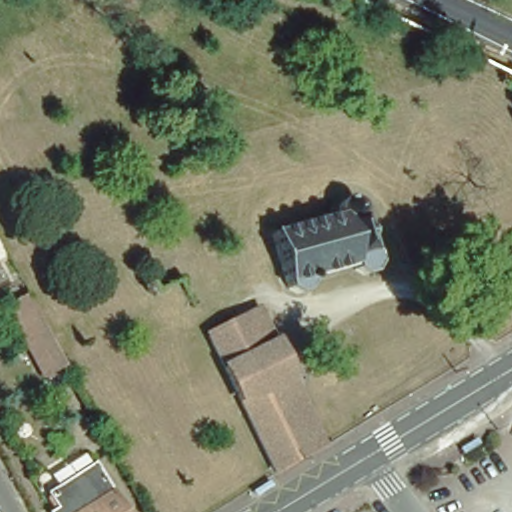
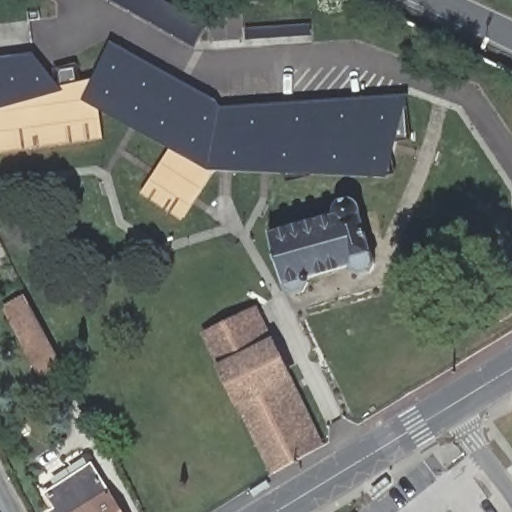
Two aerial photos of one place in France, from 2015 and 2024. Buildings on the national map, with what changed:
new [(164,0),(208,24),(195,46),(113,0),(164,0)]
new [(412,140),(396,141),(387,178),(216,171),(184,220),(142,193),(170,149),(101,110),(105,139),(0,153),(0,57),(34,53),(61,86),(95,78),(110,40),(217,100),(222,108),(408,94),(412,140)]
unchanged [(336,209),(335,206),(337,202),(339,198),(344,195),(350,195),(354,197),(356,199),(358,202),(359,207),(361,210),(358,212),(369,248),(373,247),(376,258),(372,266),(359,269),(353,264),(351,261),(310,272),(311,278),(306,287),(294,290),(283,283),(268,229),(336,209)]
unchanged [(136,291),(131,281),(146,274),(151,283),(136,291)]
unchanged [(61,363),(42,372),(8,306),(26,298),(61,363)]
unchanged [(309,446),(283,460),(270,468),(198,329),(246,305),(318,441),(309,446)]
unchanged [(59,509),(49,495),(91,468),(120,512),(55,512),(59,509)]

